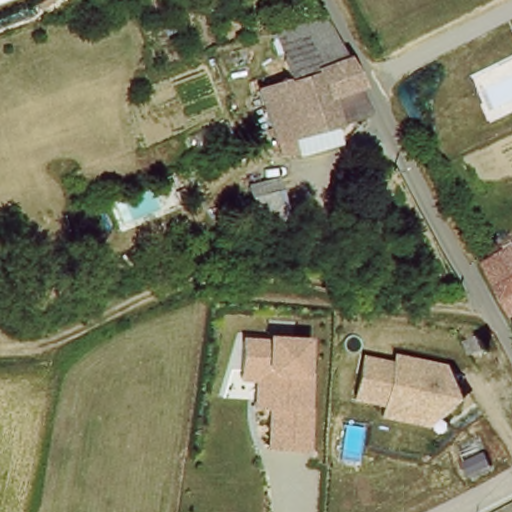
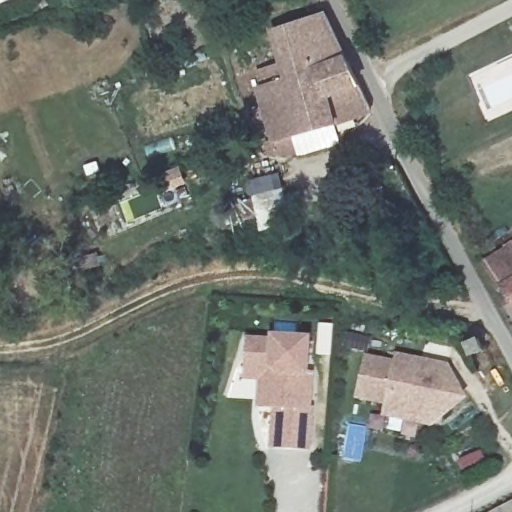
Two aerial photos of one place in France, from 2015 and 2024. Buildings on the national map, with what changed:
unchanged [(338,95),(349,124),(288,142),(270,90),(303,79),(284,32),(331,19),(364,89),(338,95)]
unchanged [(298,220),(257,230),(248,197),(279,188),(287,186),(288,188),(298,220)]
unchanged [(494,268),(512,256),(512,300),(494,268)]
unchanged [(271,448),(274,410),(258,409),(260,380),(247,380),(249,336),(272,336),(312,338),(311,372),(316,372),(314,406),(316,406),(313,452),(271,448)]
unchanged [(363,354),(394,360),(395,355),(449,365),(464,402),(434,428),(382,418),(384,405),(356,399),(363,354)]

